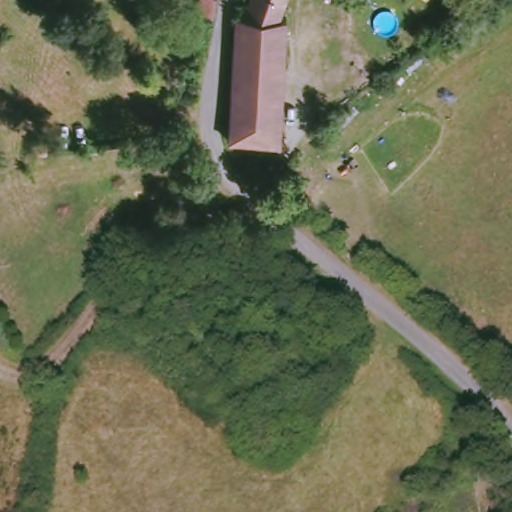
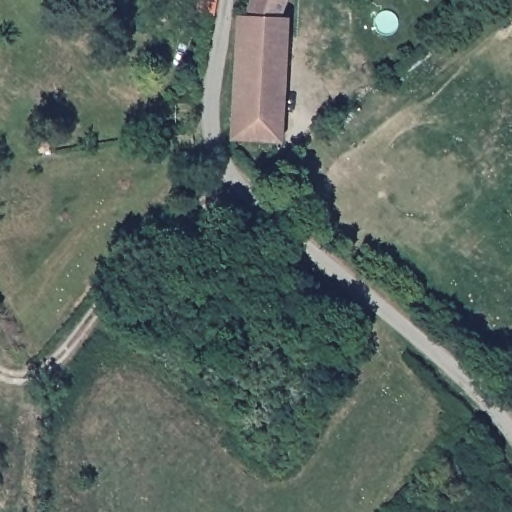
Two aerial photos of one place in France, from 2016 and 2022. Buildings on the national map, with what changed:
unchanged [(205,26),(192,23),(198,0),(210,4),(205,26)]
unchanged [(287,18),(280,143),(230,140),(237,16),(245,16),(251,0),(286,0),(280,17),(287,18)]

